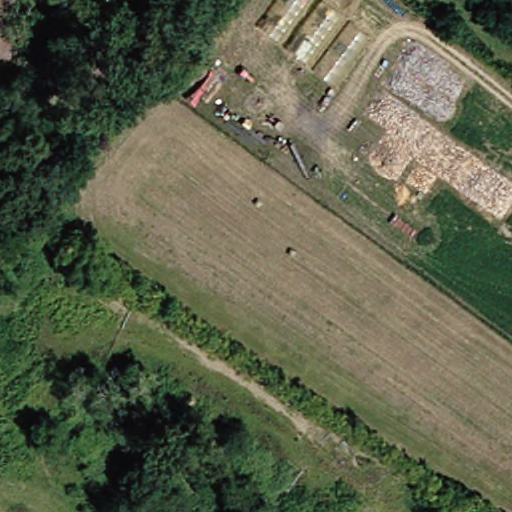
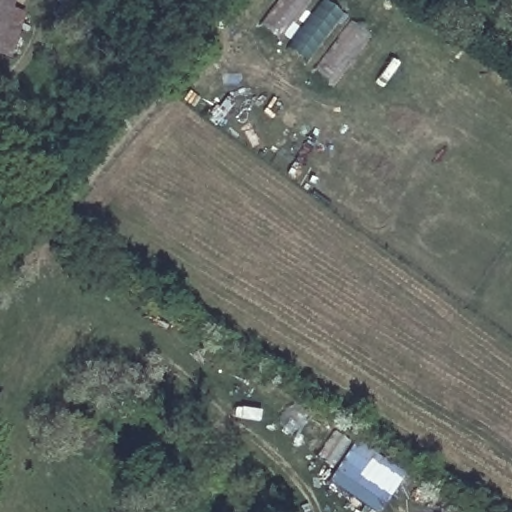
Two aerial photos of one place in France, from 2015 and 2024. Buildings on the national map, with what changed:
unchanged [(0,0),(21,0),(0,57),(0,0)]
new [(355,440),(403,476),(378,512),(371,512),(327,482),(355,440)]

